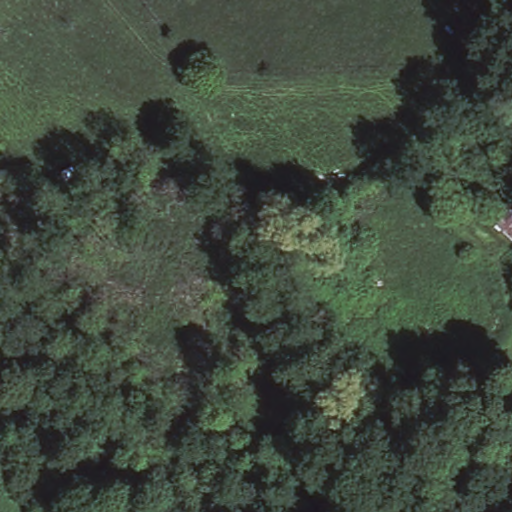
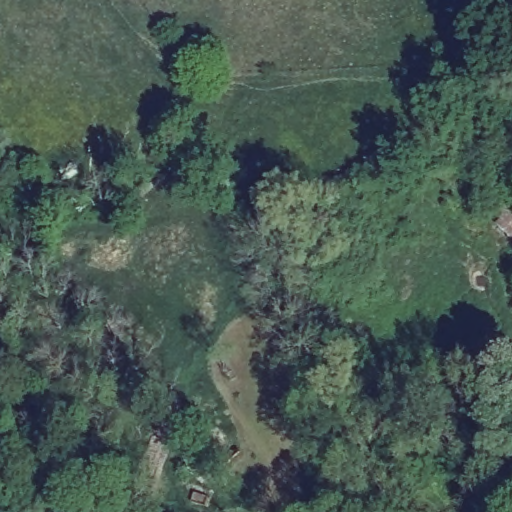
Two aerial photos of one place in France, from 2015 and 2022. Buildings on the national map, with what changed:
unchanged [(512,236),(511,237),(495,222),(512,205),(512,236)]

